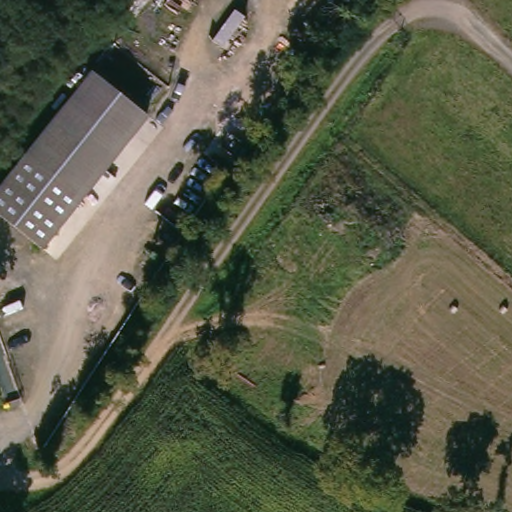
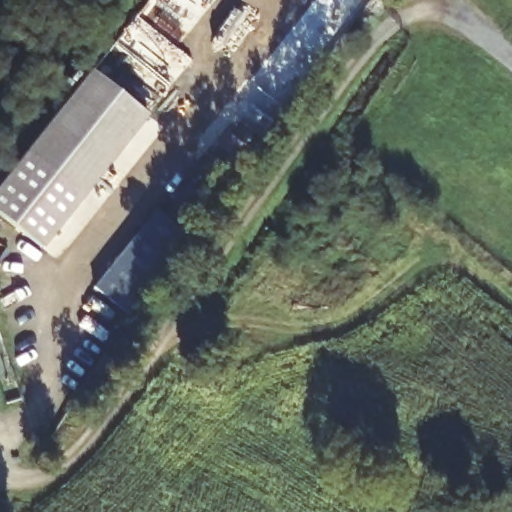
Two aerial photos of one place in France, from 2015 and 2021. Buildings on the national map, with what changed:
unchanged [(153,125),(40,254),(0,218),(0,192),(98,77),(153,125)]

